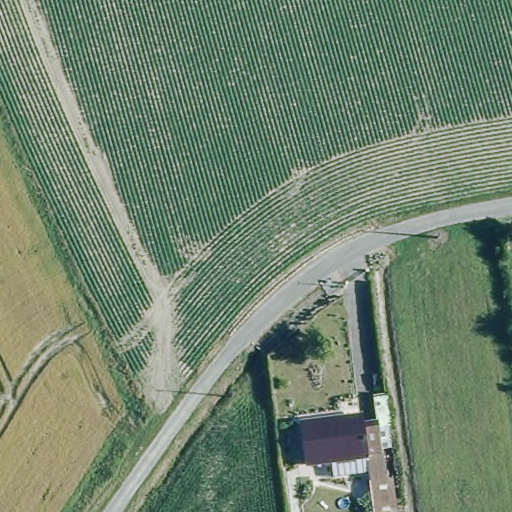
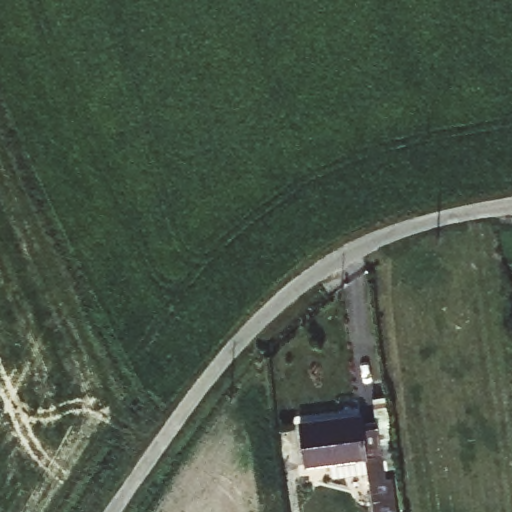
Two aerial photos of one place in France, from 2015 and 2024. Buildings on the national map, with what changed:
unchanged [(343,426),(358,423),(370,512),(352,512),(348,476),(315,481),(312,466),(287,468),(281,424),(341,416),(343,426)]

